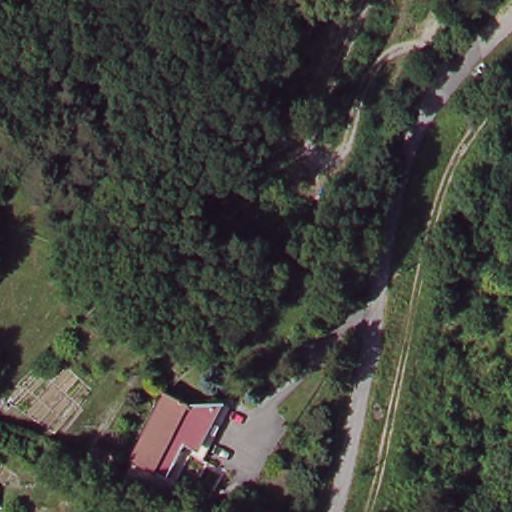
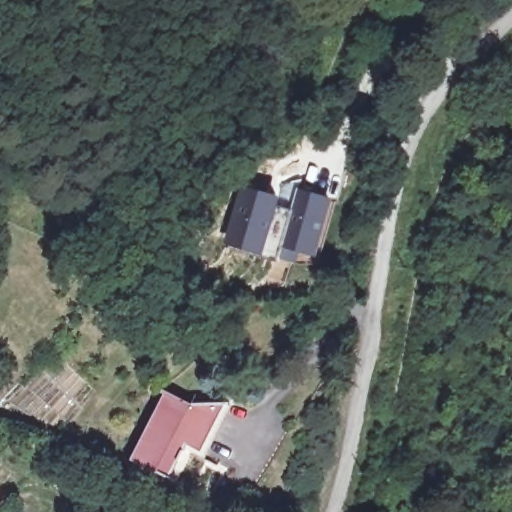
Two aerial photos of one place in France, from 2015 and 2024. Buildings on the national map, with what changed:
new [(283,197),(267,255),(225,242),(242,184),(283,197)]
new [(334,199),(319,257),(284,248),(298,189),(334,199)]
unchanged [(172,479),(137,459),(173,395),(224,411),(198,459),(186,456),(172,479)]
unchanged [(110,455),(124,462),(116,474),(101,467),(110,455)]

